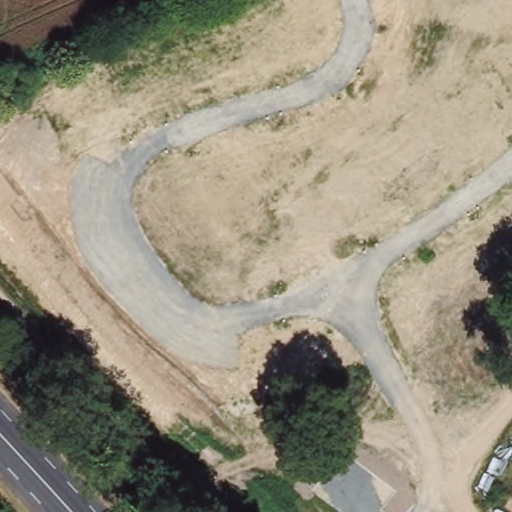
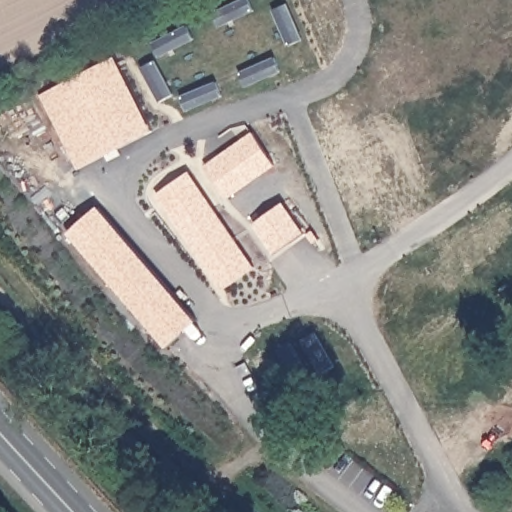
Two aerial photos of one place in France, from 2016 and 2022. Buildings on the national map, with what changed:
new [(112,60),(147,135),(140,139),(95,159),(60,85),(105,63),(112,60)]
new [(60,85),(95,159),(71,171),(36,96),(60,85)]
new [(226,197),(204,166),(251,133),(275,165),(226,197)]
new [(221,287),(156,195),(190,172),(254,265),(221,287)]
new [(273,252),(254,223),(284,202),(305,232),(273,252)]
new [(192,324),(161,350),(66,234),(97,208),(192,324)]

